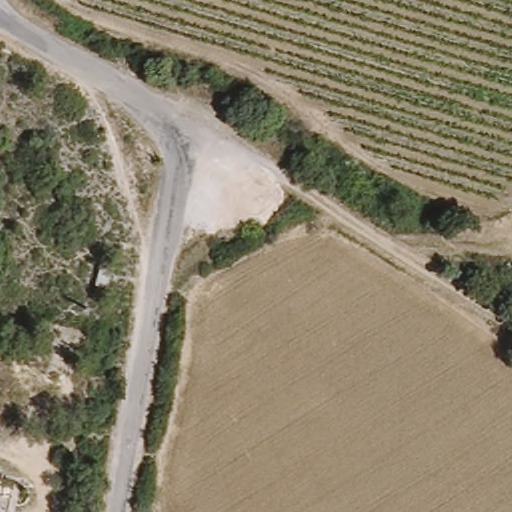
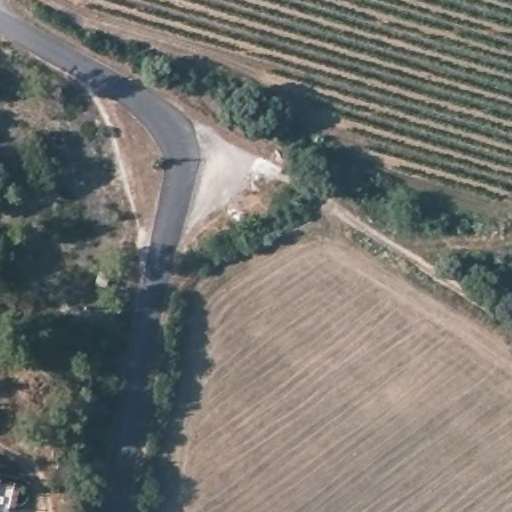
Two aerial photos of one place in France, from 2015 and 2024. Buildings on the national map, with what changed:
unchanged [(13,512),(0,512),(0,483),(19,488),(13,512)]

